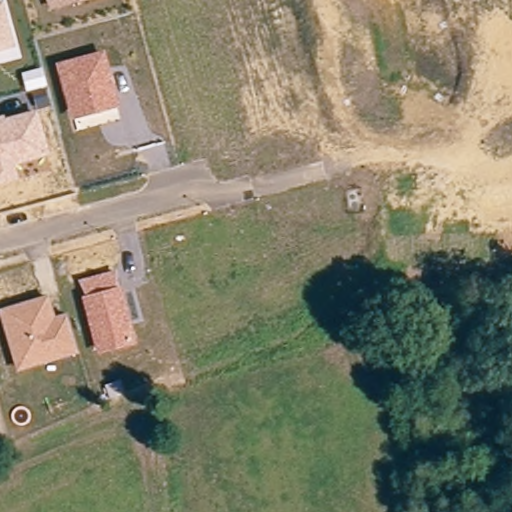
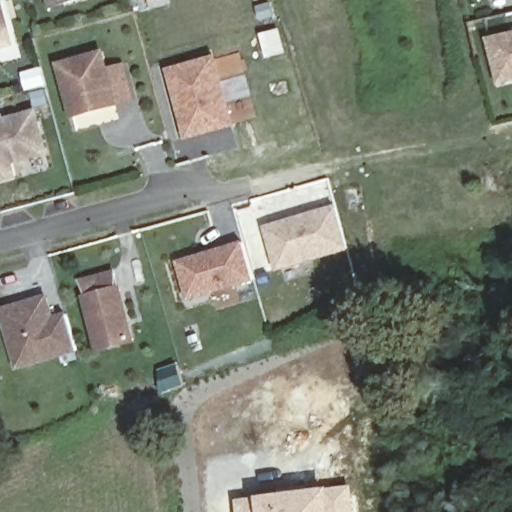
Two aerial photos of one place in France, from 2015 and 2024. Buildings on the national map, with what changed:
unchanged [(3,0),(16,46),(0,50),(0,0),(3,0)]
unchanged [(87,0),(50,11),(46,0),(87,0)]
new [(140,0),(145,0),(140,1),(140,0)]
new [(512,77),(498,81),(487,40),(512,33),(512,77)]
unchanged [(104,50),(120,106),(71,120),(56,63),(104,50)]
new [(236,125),(187,141),(166,71),(217,55),(236,125)]
unchanged [(38,110),(51,154),(15,166),(20,179),(0,184),(0,119),(38,110)]
new [(350,252),(278,273),(264,228),(337,206),(350,252)]
new [(256,281),(190,302),(177,261),(245,241),(256,281)]
unchanged [(137,343),(97,355),(78,280),(116,270),(137,343)]
unchanged [(50,295),(57,316),(68,313),(78,353),(17,372),(0,314),(0,309),(50,295)]
new [(239,503),(259,500),(330,491),(350,491),(352,512),(240,512),(239,503)]

